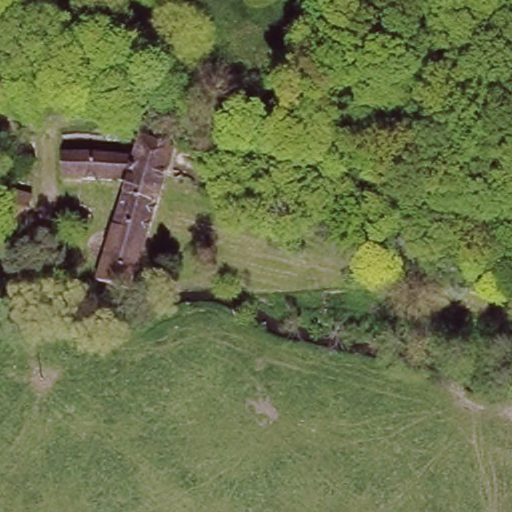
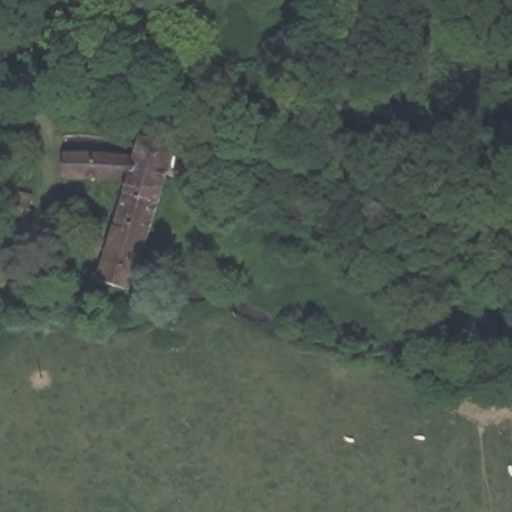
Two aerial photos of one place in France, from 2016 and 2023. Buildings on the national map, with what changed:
unchanged [(111,111),(79,100),(86,75),(119,86),(111,111)]
unchanged [(0,113),(0,85),(11,85),(12,112),(0,113)]
unchanged [(105,130),(119,132),(117,145),(103,143),(105,130)]
unchanged [(137,138),(139,133),(174,143),(167,165),(153,210),(119,198),(123,184),(132,153),(137,138)]
unchanged [(132,153),(123,184),(60,178),(60,146),(132,153)]
unchanged [(134,273),(127,270),(120,291),(95,282),(119,198),(153,210),(134,273)]
unchanged [(14,230),(0,225),(0,199),(23,208),(14,230)]

